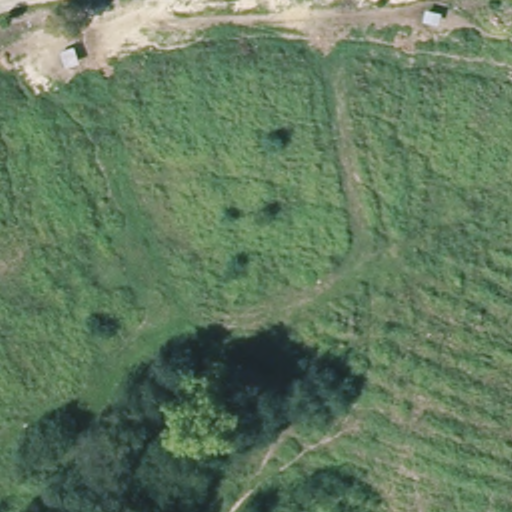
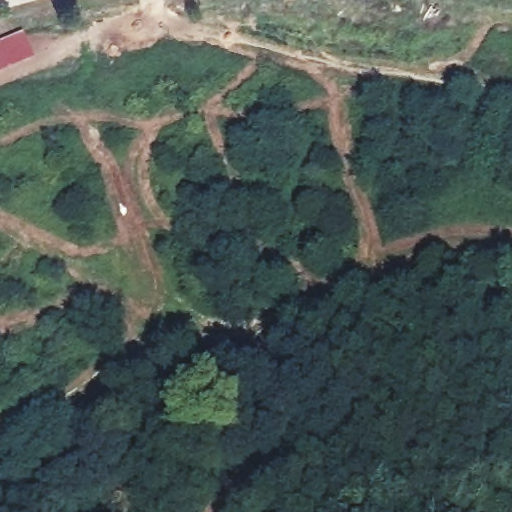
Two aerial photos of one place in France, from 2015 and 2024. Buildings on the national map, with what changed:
new [(23,32),(36,60),(0,76),(0,42),(23,32)]

